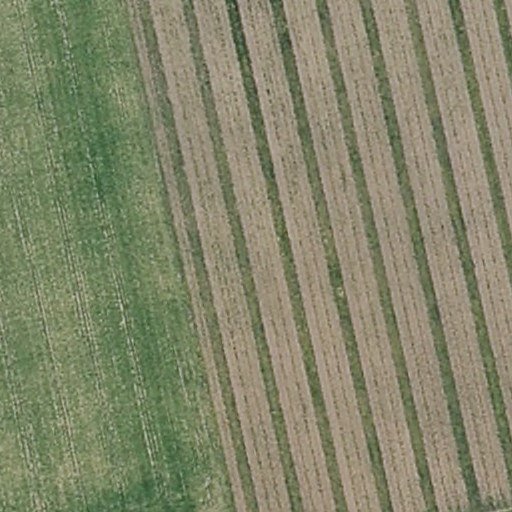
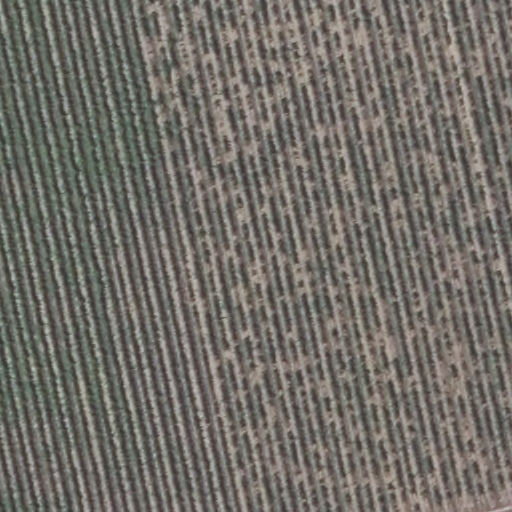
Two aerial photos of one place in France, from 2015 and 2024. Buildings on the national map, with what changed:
[]

